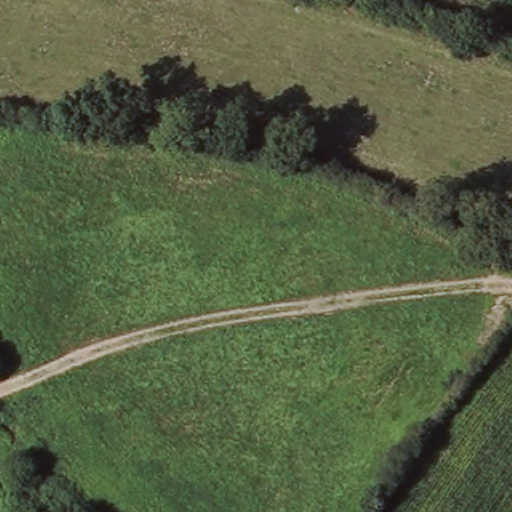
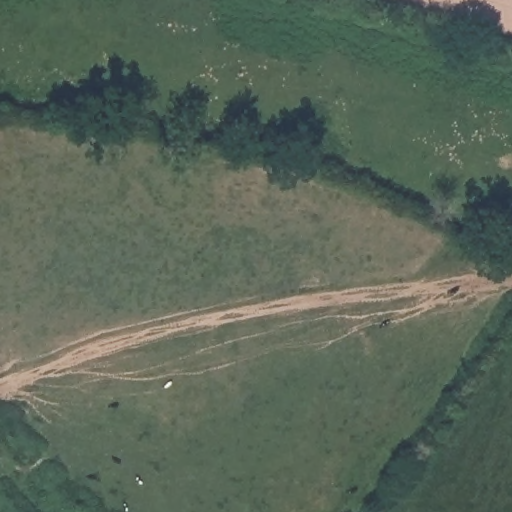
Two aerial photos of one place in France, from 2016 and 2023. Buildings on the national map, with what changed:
[]

